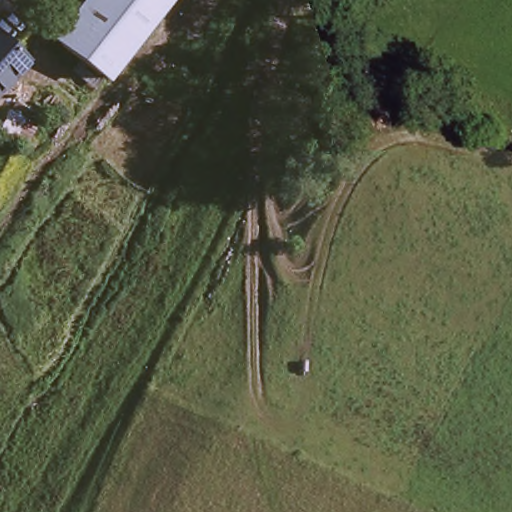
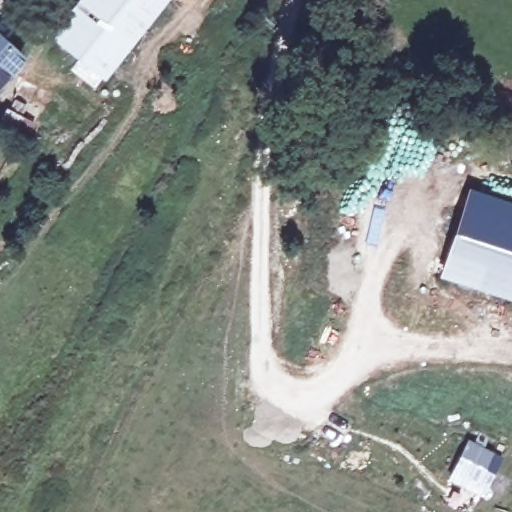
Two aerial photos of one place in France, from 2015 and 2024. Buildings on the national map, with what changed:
unchanged [(86,0),(166,0),(110,79),(58,39),(86,0)]
unchanged [(3,76),(0,74),(0,29),(24,50),(3,76)]
unchanged [(0,81),(0,74),(3,76),(0,81)]
unchanged [(14,103),(37,115),(29,131),(5,118),(14,103)]
new [(440,277),(467,188),(512,203),(512,301),(440,277)]

